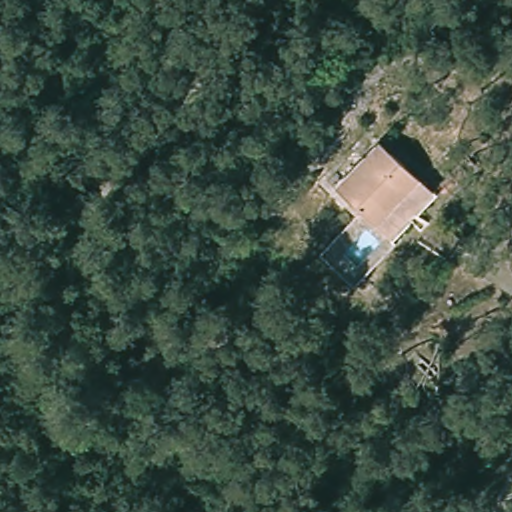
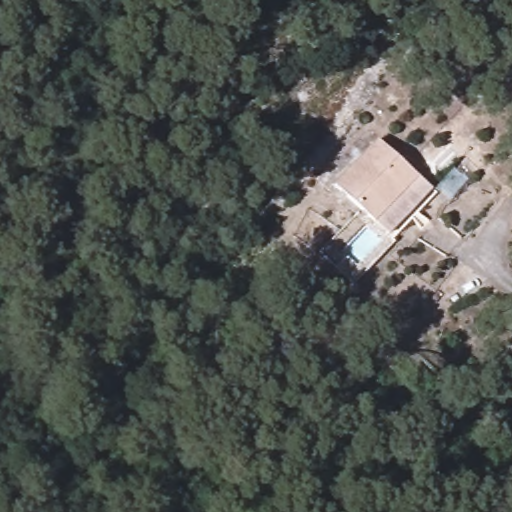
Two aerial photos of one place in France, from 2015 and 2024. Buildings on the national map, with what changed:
unchanged [(381,146),(434,195),(392,240),(339,191),(381,146)]

